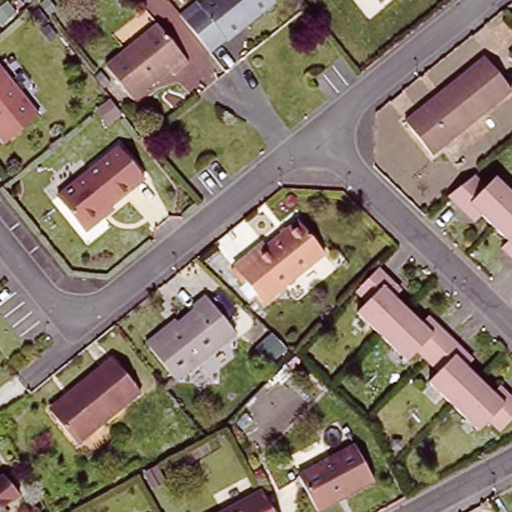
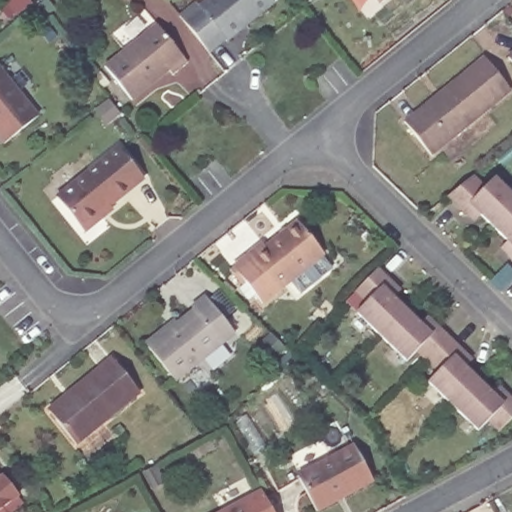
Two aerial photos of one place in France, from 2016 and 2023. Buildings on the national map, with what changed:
unchanged [(203,0),(273,0),(227,36),(225,35),(208,48),(180,12),(197,0),(200,3),(203,0)]
unchanged [(156,16),(186,55),(172,65),(167,60),(129,91),(103,58),(156,16)]
unchanged [(512,52),(512,61),(507,55),(512,52)]
unchanged [(483,55),(510,87),(430,150),(404,117),(483,55)]
unchanged [(42,112),(10,138),(0,127),(0,64),(2,62),(42,112)]
unchanged [(120,144),(147,175),(102,209),(105,213),(87,226),(59,192),(120,144)]
unchanged [(512,241),(485,215),(477,224),(470,215),(450,196),(476,175),(487,185),(497,177),(512,192),(512,255),(505,249),(512,241)]
unchanged [(298,216),(325,250),(265,297),(236,260),(266,237),(269,240),(298,216)]
unchanged [(512,398),(512,418),(500,431),(488,420),(479,430),(429,380),(437,370),(417,350),(408,360),(358,310),(367,301),(356,290),(379,267),(395,282),(402,288),(395,295),(422,321),(428,315),(437,323),(465,352),(472,358),(466,365),(492,391),(499,385),(507,393),(512,398)]
unchanged [(195,306),(192,302),(205,291),(235,328),(175,375),(150,342),(195,306)]
unchanged [(113,352),(142,387),(78,437),(52,405),(74,388),(72,385),(113,352)]
unchanged [(356,443),(375,479),(318,510),(300,473),(356,443)]
unchanged [(2,476),(5,474),(21,493),(0,511),(0,474),(2,476)]
unchanged [(277,512),(223,512),(265,490),(277,512)]

